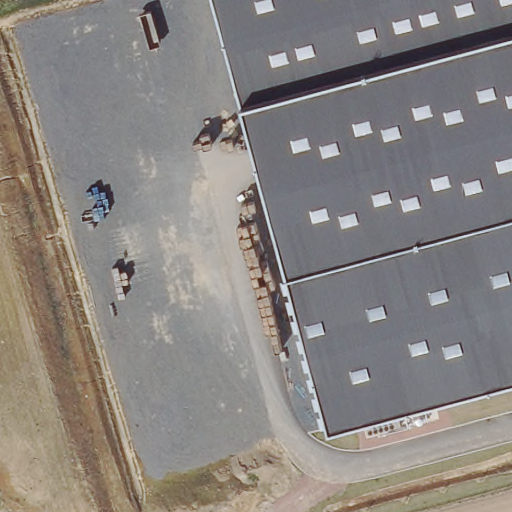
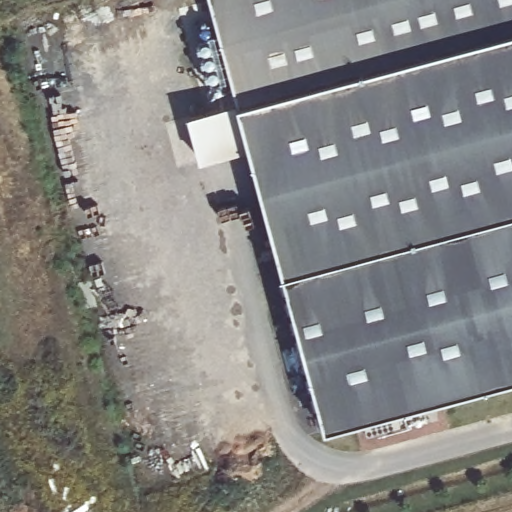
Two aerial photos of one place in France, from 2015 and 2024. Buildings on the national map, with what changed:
unchanged [(327,420),(317,423),(255,187),(262,184),(211,0),(512,0),(512,381),(330,429),(327,420)]
new [(240,103),(253,150),(199,164),(187,116),(240,103)]

